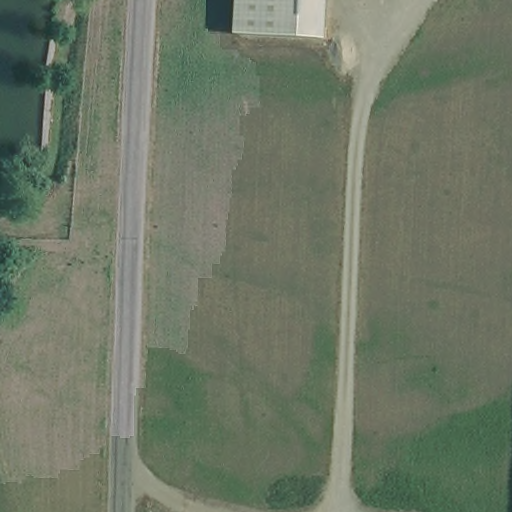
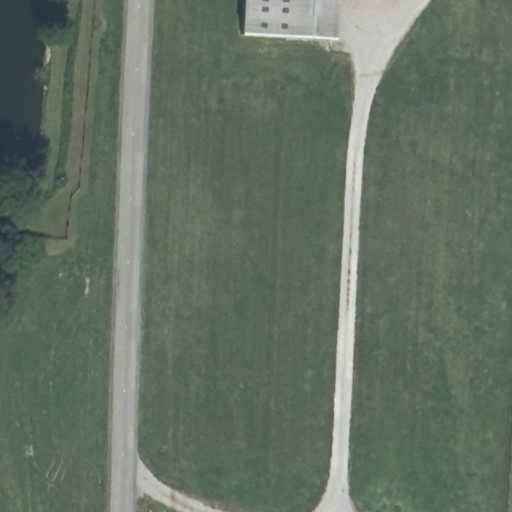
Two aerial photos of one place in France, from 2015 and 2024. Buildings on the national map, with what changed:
unchanged [(331,40),(239,35),(241,0),(333,0),(331,40)]

